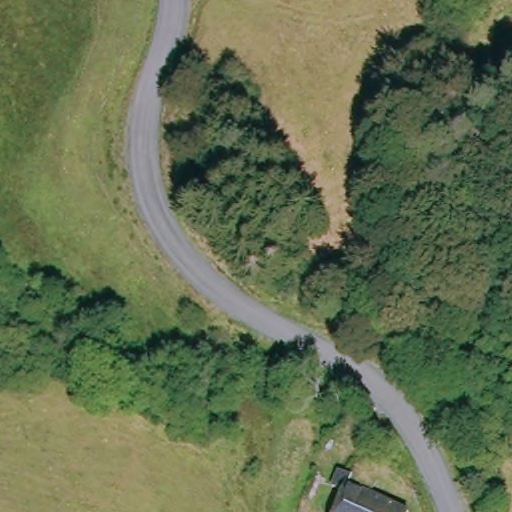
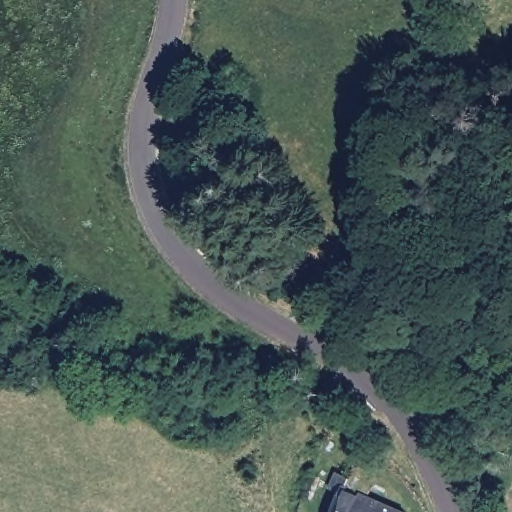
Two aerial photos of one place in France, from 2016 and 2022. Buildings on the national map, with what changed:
unchanged [(342,500),(333,493),(342,475),(355,483),(352,493),(387,512),(335,512),(342,500)]

